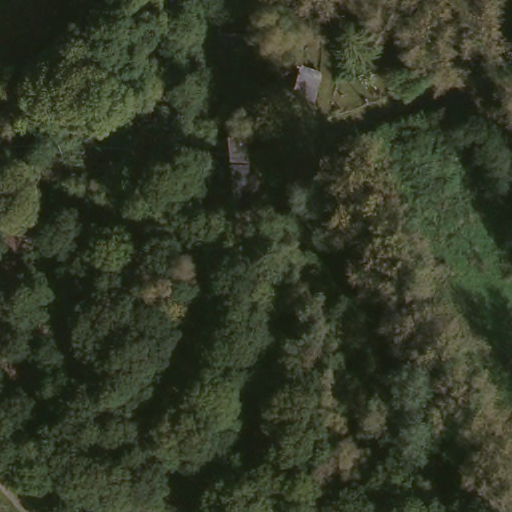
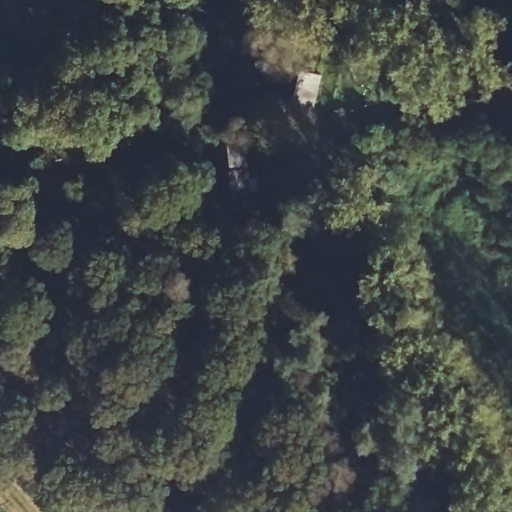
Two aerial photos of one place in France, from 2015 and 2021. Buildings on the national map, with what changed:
unchanged [(258,20),(256,45),(209,42),(211,16),(258,20)]
unchanged [(273,110),(284,65),(322,71),(308,117),(273,110)]
unchanged [(237,141),(249,203),(214,209),(204,155),(213,153),(213,145),(237,141)]

